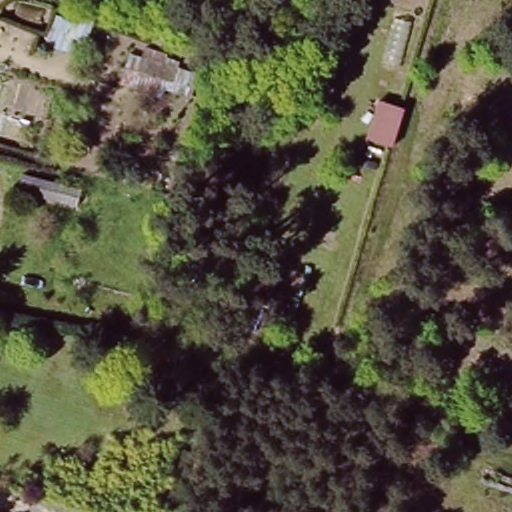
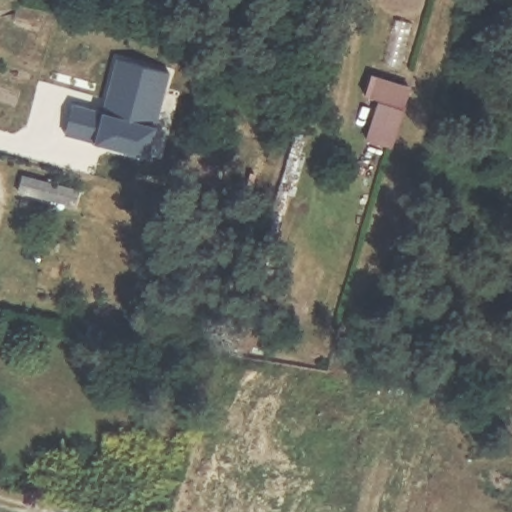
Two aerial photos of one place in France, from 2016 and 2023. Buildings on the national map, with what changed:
demolished [(161,96),(117,82),(127,52),(142,56),(145,46),(167,52),(165,56),(180,60),(178,67),(197,72),(190,97),(165,90),(161,96)]
new [(157,125),(151,154),(95,142),(95,139),(66,134),(72,103),(104,110),(117,57),(172,70),(157,125)]
new [(379,102),(404,109),(392,147),(367,140),(379,102)]
unchanged [(63,186),(58,203),(18,190),(23,174),(63,186)]
new [(64,186),(80,190),(77,206),(59,202),(64,186)]

